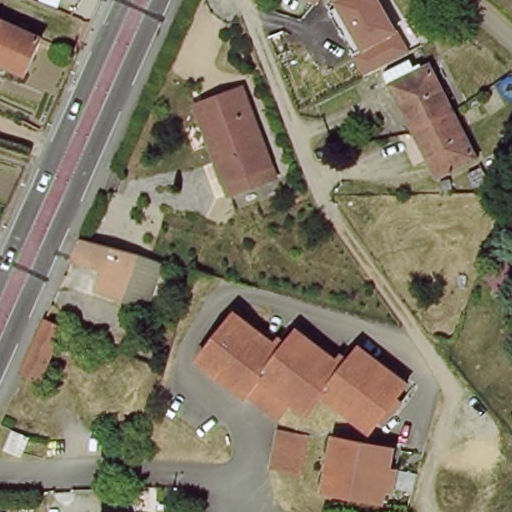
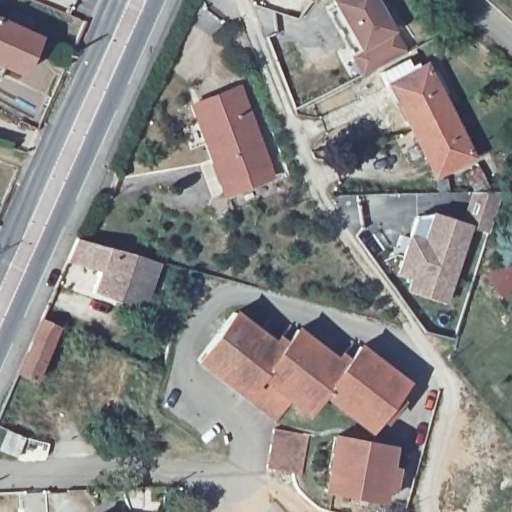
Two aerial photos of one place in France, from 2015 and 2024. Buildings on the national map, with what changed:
unchanged [(352,54),(360,50),(333,1),(335,0),(378,0),(395,31),(407,54),(364,76),(352,54)]
unchanged [(0,16),(5,17),(0,29),(0,16)]
unchanged [(27,73),(0,61),(0,29),(5,17),(44,34),(27,73)]
unchanged [(453,46),(446,32),(460,25),(472,36),(453,46)]
unchanged [(395,96),(398,94),(393,84),(390,85),(390,84),(387,85),(381,72),(407,59),(411,67),(417,63),(420,69),(427,66),(473,157),(438,175),(431,160),(429,161),(418,141),(410,123),(395,96)]
unchanged [(272,177),(227,194),(214,161),(193,105),(200,102),(239,87),(272,177)]
new [(475,194),(503,193),(490,232),(465,224),(475,194)]
new [(435,214),(465,224),(471,226),(446,302),(410,290),(413,277),(399,273),(417,216),(435,214)]
unchanged [(77,238),(162,263),(145,311),(92,292),(99,271),(67,262),(77,238)]
unchanged [(505,261),(512,270),(512,288),(502,297),(485,277),(505,261)]
unchanged [(323,393),(313,405),(307,412),(292,401),(276,421),(245,396),(197,359),(234,312),(282,348),(297,329),(344,366),(360,346),(375,357),(382,363),(407,383),(396,397),(402,402),(395,410),(390,405),(377,422),(370,430),(323,393)]
unchanged [(59,329),(36,380),(18,372),(41,321),(59,329)]
unchanged [(308,435),(301,475),(295,473),(267,468),(268,465),(275,428),(308,435)]
unchanged [(8,431),(25,438),(17,457),(0,450),(8,431)]
unchanged [(392,492),(385,490),(383,502),(370,499),(334,492),(325,491),(325,484),(335,437),(344,438),(393,447),(390,467),(397,468),(392,492)]

